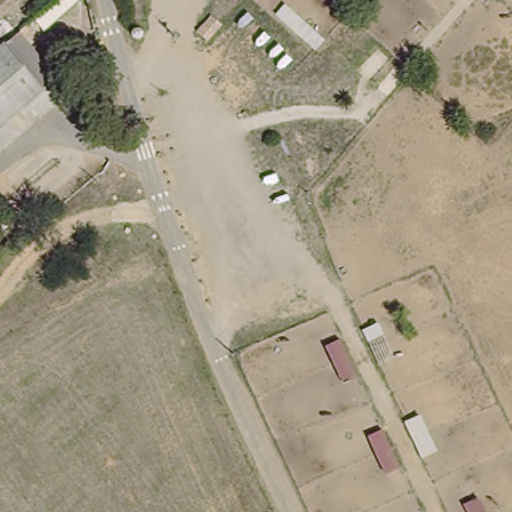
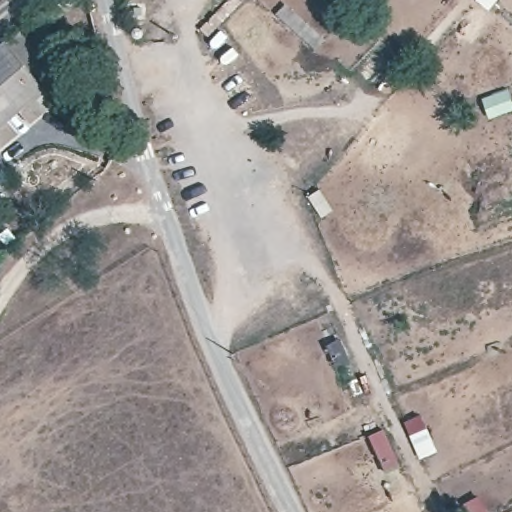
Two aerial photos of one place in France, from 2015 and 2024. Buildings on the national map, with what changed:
unchanged [(13,111),(43,87),(3,42),(12,33),(50,77),(63,93),(25,125),(13,111)]
unchanged [(43,87),(13,111),(1,121),(11,134),(0,143),(0,44),(3,42),(43,87)]

